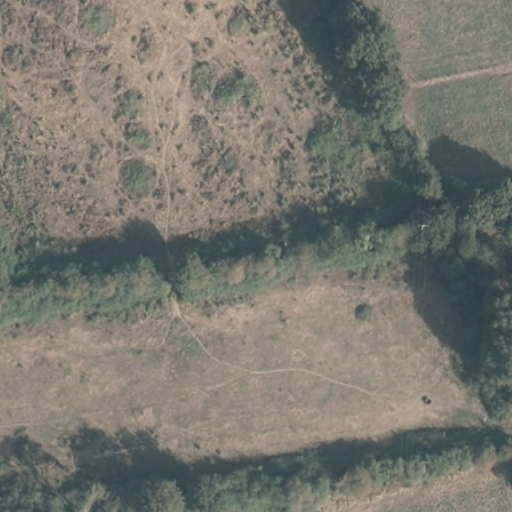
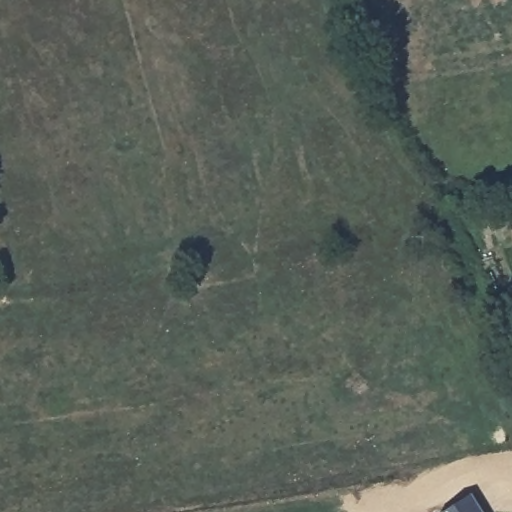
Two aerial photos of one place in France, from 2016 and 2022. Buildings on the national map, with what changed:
new [(483,512),(438,512),(470,492),(483,512)]

